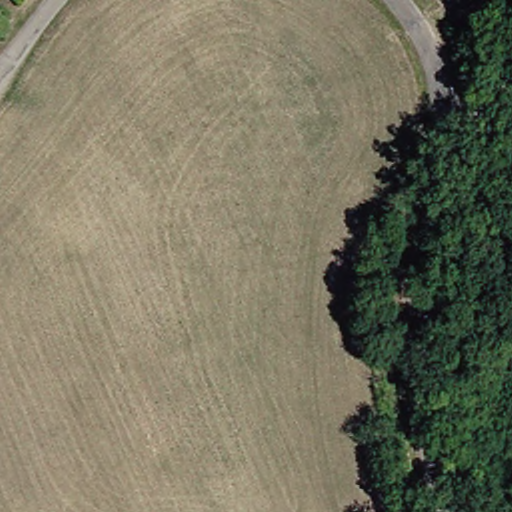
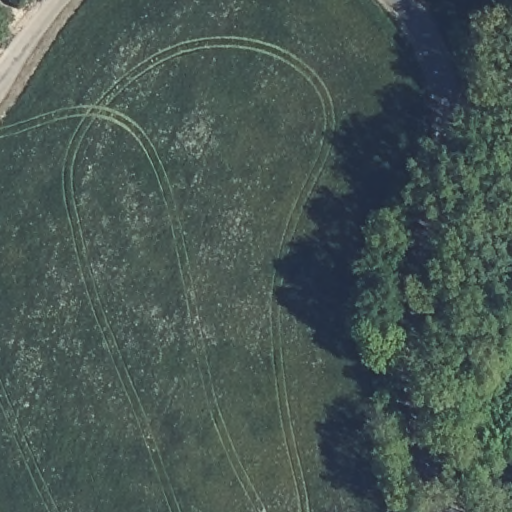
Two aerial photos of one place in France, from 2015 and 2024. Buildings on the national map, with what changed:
[]

